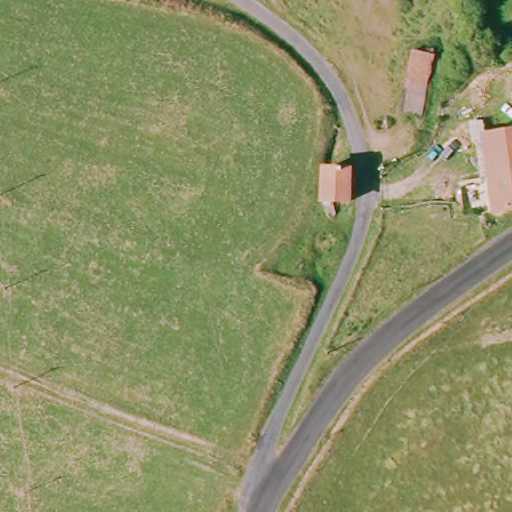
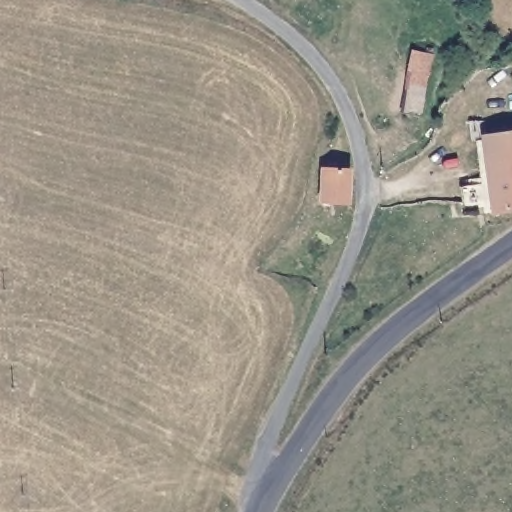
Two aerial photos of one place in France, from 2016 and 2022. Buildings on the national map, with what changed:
unchanged [(434,55),(422,114),(404,111),(411,49),(434,55)]
unchanged [(468,191),(467,183),(496,180),(490,134),(512,130),(512,209),(500,212),(470,203),(468,191)]
unchanged [(351,172),(350,203),(323,204),(324,173),(351,172)]

